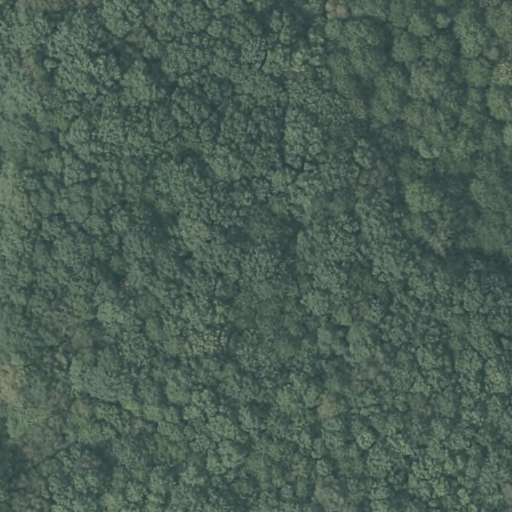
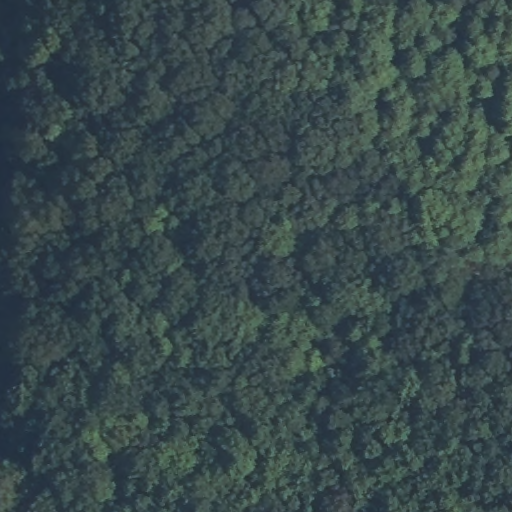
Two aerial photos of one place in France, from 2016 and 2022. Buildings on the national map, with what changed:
[]

